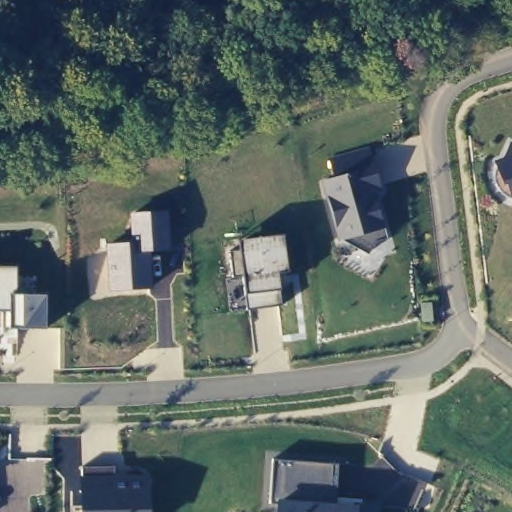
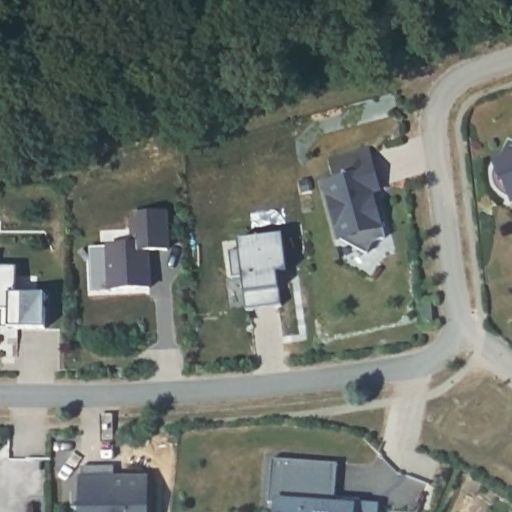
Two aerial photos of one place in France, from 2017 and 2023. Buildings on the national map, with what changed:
unchanged [(503,197),(495,187),(493,172),(495,162),(501,161),(509,144),(512,145),(512,200),(503,197)]
unchanged [(387,236),(374,239),(365,254),(342,240),(337,240),(320,178),(330,176),(325,154),(367,145),(382,191),(377,193),(387,231),(387,236)]
unchanged [(140,242),(140,234),(132,236),(130,213),(167,211),(170,250),(149,252),(152,288),(108,291),(105,244),(140,242)]
unchanged [(287,270),(277,272),(280,305),(245,309),(240,276),(230,278),(226,247),(238,246),(237,239),(282,234),(287,270)]
unchanged [(3,328),(3,310),(0,310),(0,268),(15,268),(16,295),(45,295),(45,329),(3,328)]
unchanged [(336,497),(362,499),(362,503),(380,504),(380,512),(275,512),(275,505),(268,505),(272,460),(338,464),(336,497)]
unchanged [(83,512),(81,464),(115,464),(115,478),(147,479),(148,512),(83,512)]

